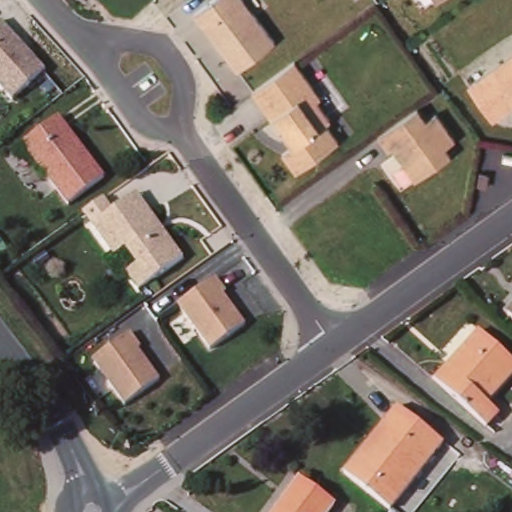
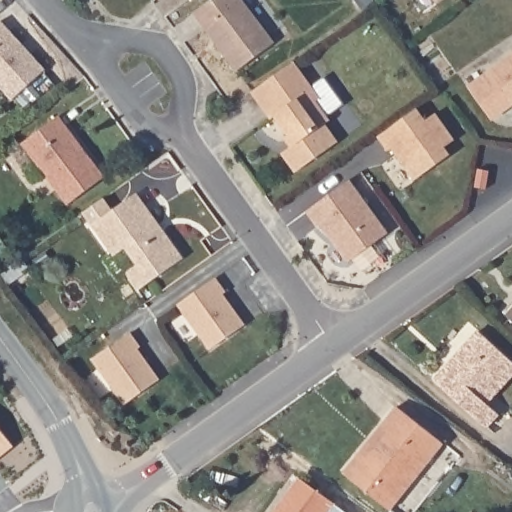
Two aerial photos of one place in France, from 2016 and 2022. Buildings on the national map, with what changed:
unchanged [(247,0),(278,41),(240,70),(221,43),(225,40),(212,23),(208,26),(198,12),(214,0),(247,0)]
unchanged [(43,71),(7,101),(0,92),(0,22),(43,71)]
unchanged [(470,82),(512,53),(512,106),(496,118),(470,82)]
unchanged [(296,61),(321,93),(318,101),(331,116),(328,124),(339,140),(299,168),(286,152),(299,141),(278,112),(272,116),(255,90),(296,61)]
unchanged [(459,136),(450,144),(456,153),(422,177),(399,146),(394,150),(382,134),(420,105),(428,115),(441,111),(459,136)]
unchanged [(60,114),(106,175),(70,202),(24,141),(60,114)]
new [(350,180),(388,233),(348,263),(321,225),(318,227),(306,211),(350,180)]
unchanged [(145,288),(99,223),(137,196),(144,192),(157,210),(190,256),(145,288)]
unchanged [(242,325),(206,351),(174,304),(212,277),(242,325)]
unchanged [(512,304),(512,321),(503,313),(512,304)]
unchanged [(512,361),(512,374),(486,401),(498,412),(483,427),(430,381),(477,332),(512,361)]
unchanged [(157,381),(120,408),(90,358),(130,334),(157,381)]
unchanged [(351,459),(377,428),(393,408),(441,444),(387,512),(384,512),(336,477),(351,459)]
unchanged [(298,478),(335,505),(330,512),(272,512),(298,478)]

